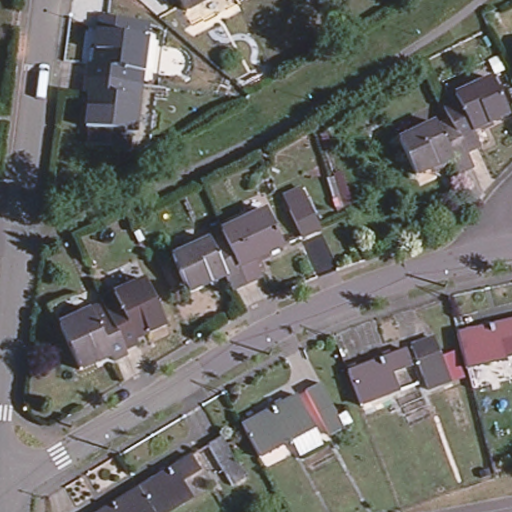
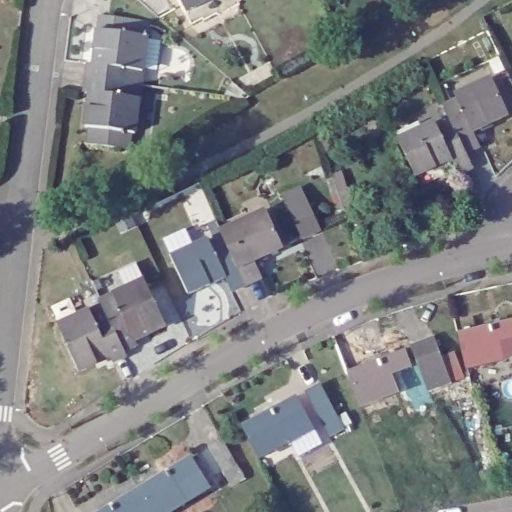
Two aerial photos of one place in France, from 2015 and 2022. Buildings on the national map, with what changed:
unchanged [(175,0),(207,0),(183,13),(175,0)]
unchanged [(145,95),(91,88),(92,74),(101,75),(102,63),(97,63),(100,41),(101,42),(103,29),(150,34),(149,48),(150,48),(145,95)]
unchanged [(443,106),(457,99),(455,95),(491,78),(508,113),(470,131),(477,145),(464,152),(450,119),(443,106)]
unchanged [(91,152),(93,136),(90,136),(91,115),(96,115),(98,104),(90,103),(91,88),(145,95),(140,141),(137,141),(136,156),(136,158),(91,152)]
unchanged [(457,175),(450,160),(414,177),(397,138),(432,122),(434,126),(450,119),(464,152),(471,167),(457,175)]
unchanged [(308,241),(290,200),(308,191),(326,232),(308,241)]
unchanged [(222,228),(267,208),(284,244),(255,258),(262,276),(246,283),(225,234),(222,228)]
unchanged [(171,254),(208,237),(210,241),(225,234),(246,283),(230,290),(225,276),(189,292),(171,254)]
unchanged [(100,300),(145,281),(164,326),(146,334),(145,331),(131,337),(135,346),(122,352),(102,305),(100,300)]
unchanged [(478,320),(456,325),(451,305),(473,299),(478,320)]
unchanged [(123,355),(109,361),(105,351),(93,356),(95,360),(77,368),(58,323),(102,305),(122,352),(123,355)]
unchanged [(502,320),(512,318),(512,359),(511,359),(509,348),(502,320)]
unchanged [(444,371),(436,336),(495,323),(499,338),(503,358),(483,362),(444,371)]
unchanged [(410,350),(431,343),(446,385),(426,392),(410,350)]
unchanged [(360,407),(346,374),(403,353),(408,368),(416,386),(395,394),(360,407)]
unchanged [(309,398),(323,392),(336,421),(322,427),(309,398)]
unchanged [(300,413),(310,431),(292,441),(258,460),(240,428),(293,400),(300,413)]
unchanged [(235,493),(226,478),(211,453),(225,445),(239,471),(247,485),(235,493)]
unchanged [(189,459),(197,473),(180,484),(190,501),(172,512),(149,512),(136,491),(189,459)]
unchanged [(136,491),(149,512),(101,512),(136,491)]

